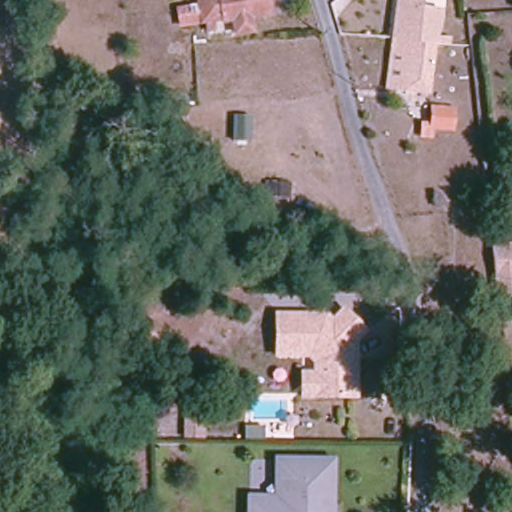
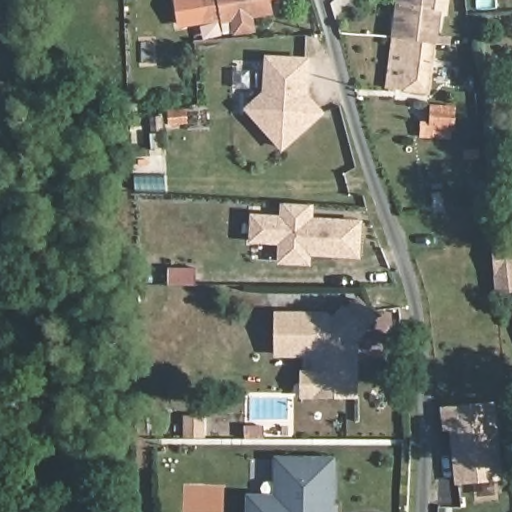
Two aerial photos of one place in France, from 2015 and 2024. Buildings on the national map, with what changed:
unchanged [(202,1),(202,0),(271,0),(273,12),(253,15),(255,30),(239,32),(235,18),(225,19),(225,17),(213,18),(215,29),(208,30),(205,20),(203,20),(202,17),(191,18),(189,2),(202,1)]
unchanged [(400,0),(452,0),(451,11),(441,15),(436,40),(396,36),(400,0)]
unchanged [(195,33),(202,32),(204,40),(196,41),(195,33)]
unchanged [(436,40),(431,93),(390,88),(396,36),(436,40)]
new [(283,151),(256,119),(246,107),(263,91),(265,54),(311,57),(309,93),(325,112),(283,151)]
unchanged [(453,104),(451,122),(433,120),(435,102),(453,104)]
unchanged [(190,106),(191,117),(175,118),(175,108),(190,106)]
unchanged [(423,130),(424,120),(433,120),(433,131),(423,130)]
new [(255,219),(285,220),(286,204),(315,206),(313,221),(362,224),(360,257),(311,254),(311,264),(282,263),(283,244),(254,242),(255,219)]
unchanged [(496,295),(490,244),(512,242),(512,293),(496,295)]
unchanged [(345,308),(362,298),(377,319),(358,343),(360,398),(300,400),(300,371),(311,370),(312,365),(306,359),(273,357),(272,312),(327,311),(332,315),(345,308)]
new [(456,483),(451,432),(444,433),(441,406),(495,401),(503,479),(456,483)]
unchanged [(297,463),(338,462),(338,508),(338,512),(297,512),(297,505),(297,463)]
unchanged [(297,512),(257,512),(257,505),(297,505),(297,512)]

